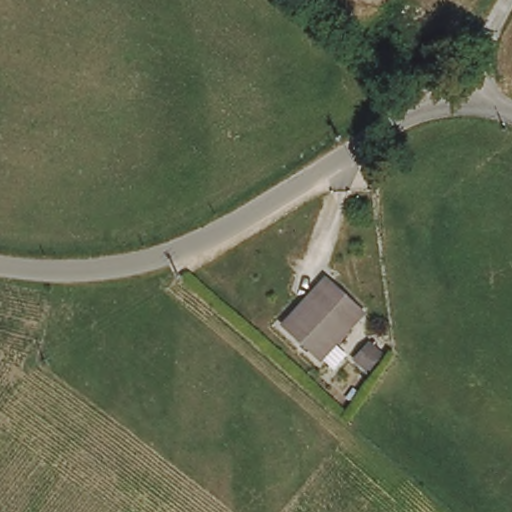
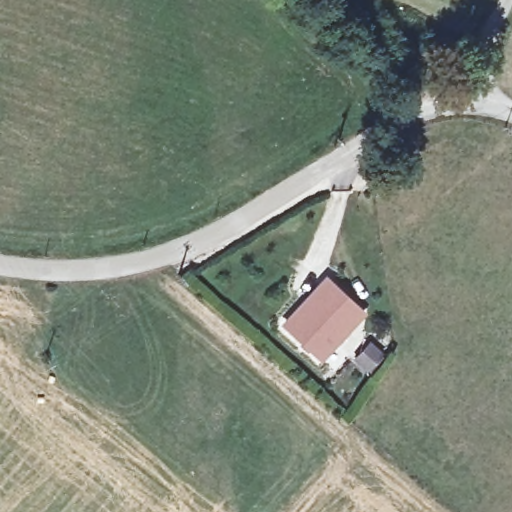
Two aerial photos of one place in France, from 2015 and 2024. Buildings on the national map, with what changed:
unchanged [(388,30),(400,17),(409,6),(439,32),(431,44),(419,56),(388,30)]
unchanged [(326,278),(362,313),(321,356),(284,322),(326,278)]
unchanged [(368,344),(379,354),(366,369),(354,359),(368,344)]

